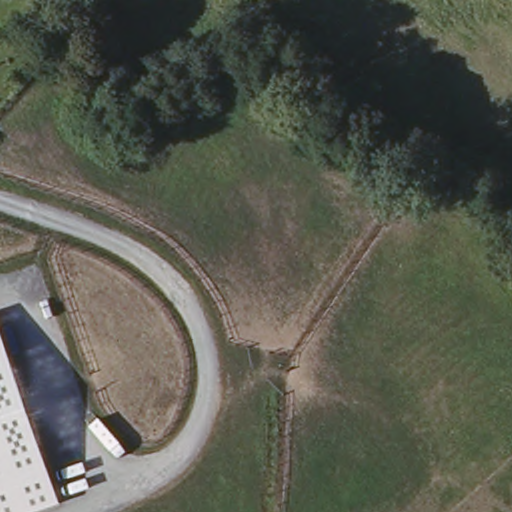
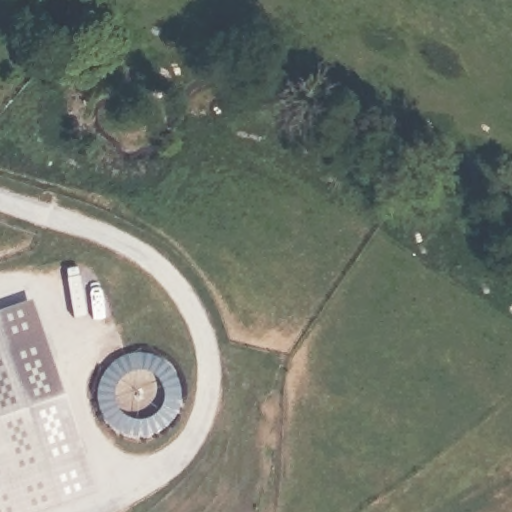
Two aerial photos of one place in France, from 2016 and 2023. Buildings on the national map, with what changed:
unchanged [(34,512),(0,512),(0,308),(32,297),(98,491),(34,512)]
new [(178,404),(175,412),(171,419),(166,426),(160,431),(152,435),(144,438),(135,439),(127,438),(119,435),(111,431),(105,426),(100,419),(95,412),(93,404),(92,395),(93,387),(95,379),(100,371),(105,364),(111,359),(119,355),(127,353),(135,352),(144,353),(152,355),(160,359),(166,364),(171,371),(175,379),(178,387),(179,395),(178,404)]

